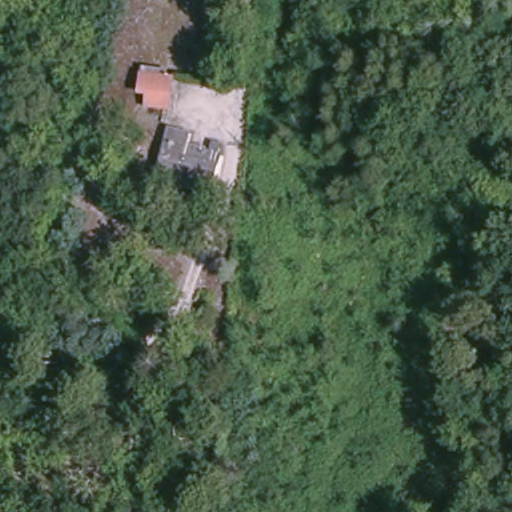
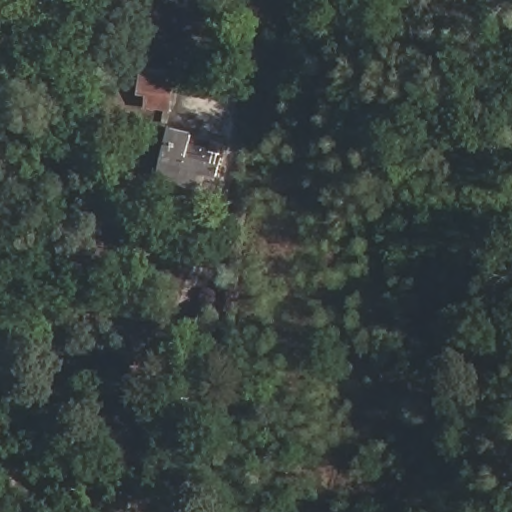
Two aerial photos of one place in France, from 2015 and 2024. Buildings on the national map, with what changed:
unchanged [(175,110),(147,109),(148,95),(137,93),(141,71),(176,73),(175,110)]
unchanged [(217,193),(158,178),(169,125),(194,129),(190,142),(212,149),(214,139),(227,143),(217,193)]
unchanged [(159,408),(160,391),(194,393),(193,410),(159,408)]

